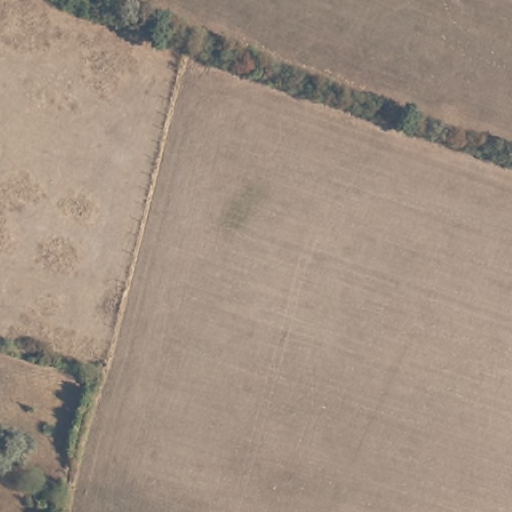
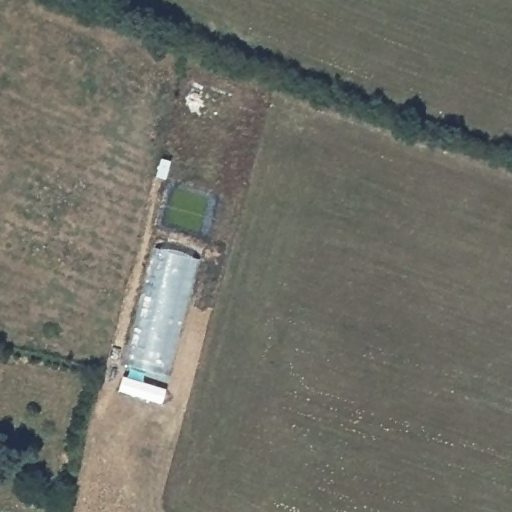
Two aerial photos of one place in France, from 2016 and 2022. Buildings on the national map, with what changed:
new [(202,262),(173,377),(126,366),(153,248),(202,262)]

